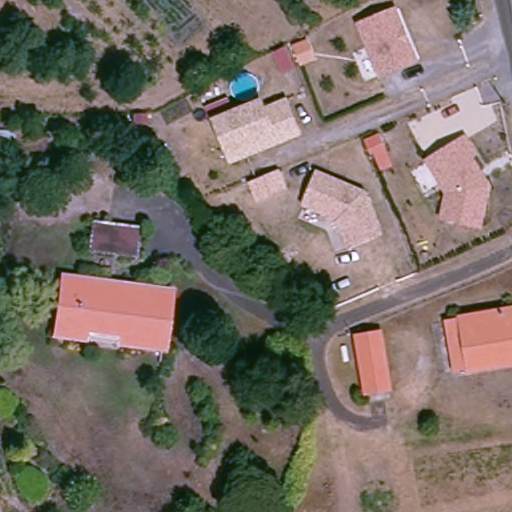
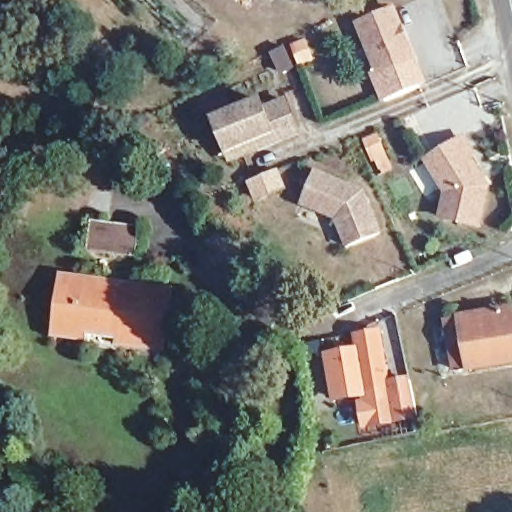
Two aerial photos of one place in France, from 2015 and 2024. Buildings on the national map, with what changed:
unchanged [(392,11),(412,62),(377,76),(356,25),(392,11)]
unchanged [(306,40),(313,59),(300,64),(293,46),(306,40)]
unchanged [(232,162),(229,154),(215,121),(261,102),(265,110),(285,101),(295,125),(299,135),(232,162)]
unchanged [(490,189),(483,227),(446,221),(451,197),(426,167),(459,140),(471,155),(467,157),(490,189)]
unchanged [(263,177),(275,172),(282,190),(256,200),(248,183),(263,177)]
unchanged [(381,234),(349,247),(337,219),(304,205),(318,172),(365,192),(381,234)]
unchanged [(140,227),(136,258),(87,252),(91,221),(140,227)]
unchanged [(167,286),(164,305),(172,305),(169,326),(161,325),(159,342),(121,337),(122,330),(93,325),(91,333),(69,330),(71,310),(63,310),(67,281),(92,284),(93,277),(167,286)]
unchanged [(450,311),(512,300),(512,353),(460,362),(450,311)]
new [(382,329),(391,380),(410,376),(418,419),(362,430),(357,397),(352,398),(332,402),(324,353),(354,347),(352,333),(382,329)]
demolished [(389,389),(366,393),(356,337),(379,333),(389,389)]

